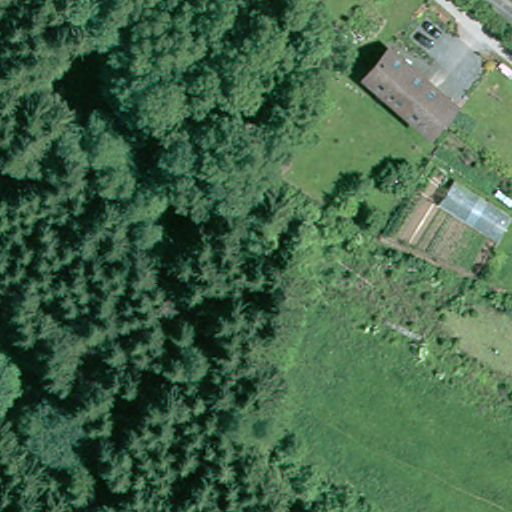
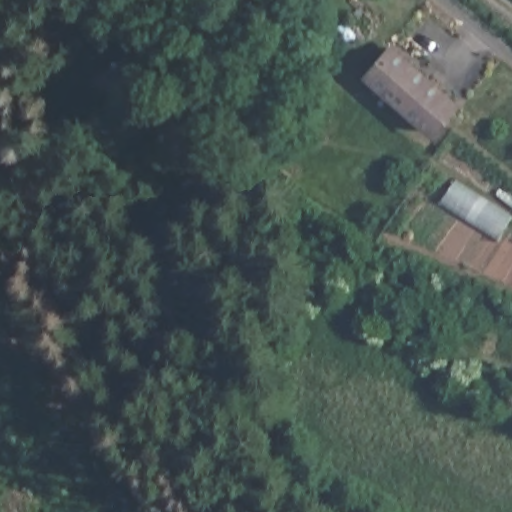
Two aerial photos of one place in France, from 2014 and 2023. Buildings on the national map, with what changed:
unchanged [(428,136),(383,97),(409,68),(454,106),(428,136)]

